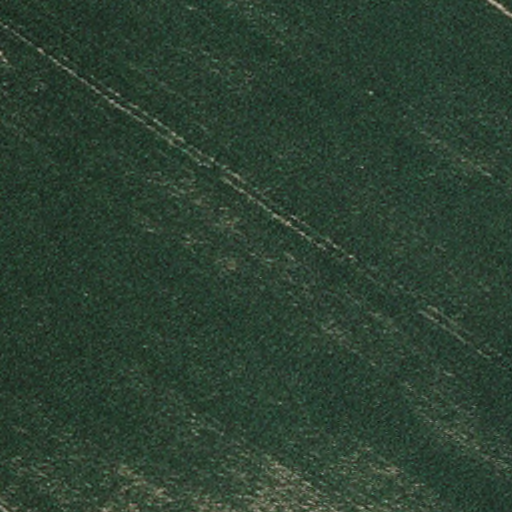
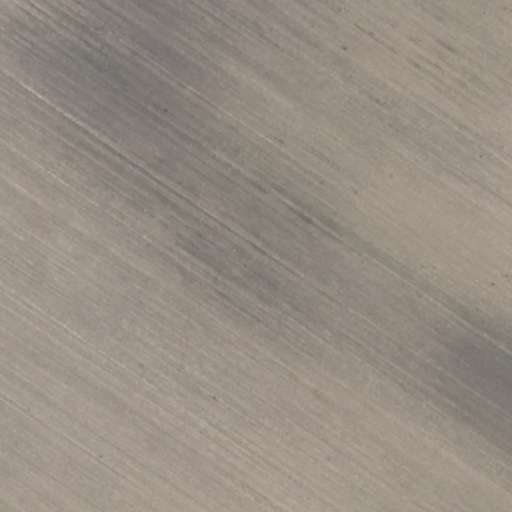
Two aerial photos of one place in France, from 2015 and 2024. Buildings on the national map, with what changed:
[]

